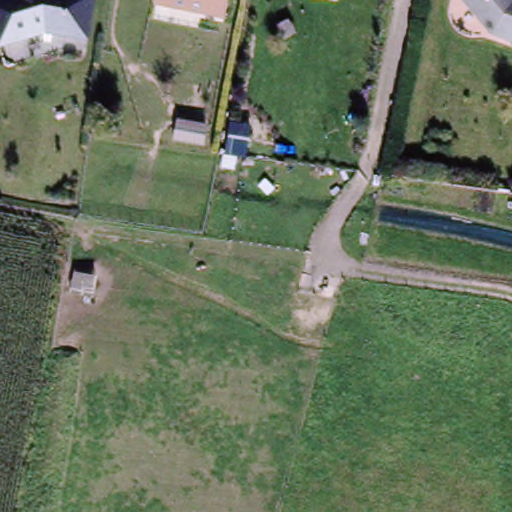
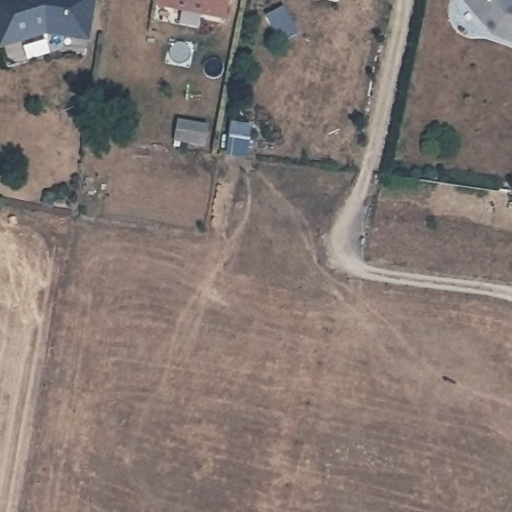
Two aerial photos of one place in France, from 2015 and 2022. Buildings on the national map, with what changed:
unchanged [(49,32),(9,45),(0,16),(0,0),(102,0),(92,39),(49,32)]
unchanged [(163,0),(230,0),(227,13),(163,0)]
unchanged [(492,35),(463,0),(512,0),(512,42),(492,35)]

